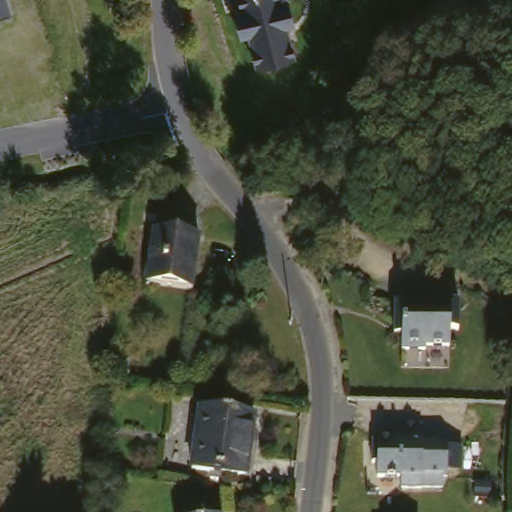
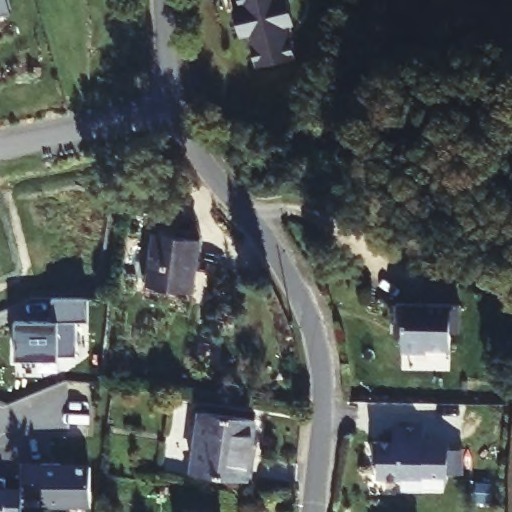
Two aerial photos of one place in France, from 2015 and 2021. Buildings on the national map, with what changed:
unchanged [(10,11),(0,14),(0,0),(6,0),(10,11)]
unchanged [(234,17),(229,0),(244,0),(248,14),(241,15),(234,17)]
unchanged [(285,4),(292,2),(298,27),(291,29),(300,61),(263,71),(255,39),(248,41),(241,15),(248,14),(244,0),(284,0),(285,4)]
unchanged [(198,236),(191,285),(146,279),(153,229),(198,236)]
new [(37,361),(15,361),(15,321),(53,321),(53,298),(88,298),(88,322),(77,322),(77,357),(58,357),(58,361),(37,361)]
unchanged [(462,304),(462,331),(453,331),(453,348),(430,348),(430,352),(406,352),(406,336),(398,336),(398,304),(462,304)]
unchanged [(255,421),(246,478),(192,471),(199,413),(255,421)]
unchanged [(465,467),(450,467),(450,473),(446,473),(446,483),(425,483),(425,484),(405,484),(405,473),(380,473),(380,459),(375,459),(375,437),(395,437),(395,422),(425,422),(425,437),(450,437),(450,443),(465,443),(465,467)]
new [(27,467),(44,467),(44,465),(89,466),(91,508),(43,508),(43,499),(27,498),(27,467)]
new [(5,480),(5,490),(21,490),(21,512),(0,512),(0,480),(5,480)]

